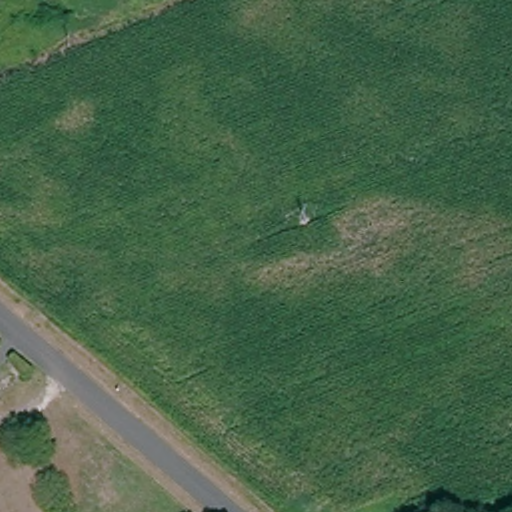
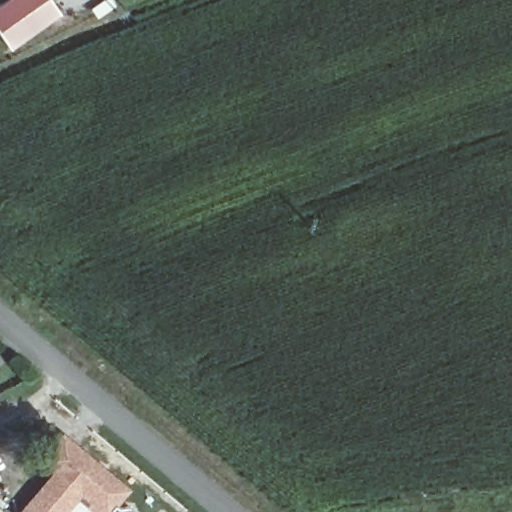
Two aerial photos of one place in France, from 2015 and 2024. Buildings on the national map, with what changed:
new [(5,0),(48,0),(59,15),(11,49),(0,35),(0,3),(5,0)]
new [(36,461),(61,432),(130,489),(118,503),(122,506),(116,512),(93,512),(86,506),(89,502),(80,497),(67,512),(18,512),(50,473),(36,461)]
new [(128,507),(132,512),(116,512),(121,507),(128,507)]

